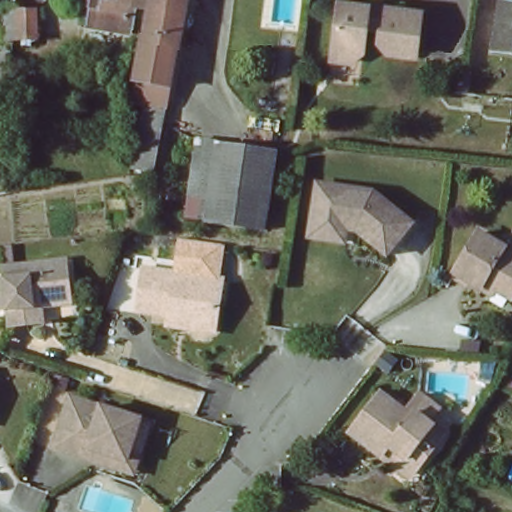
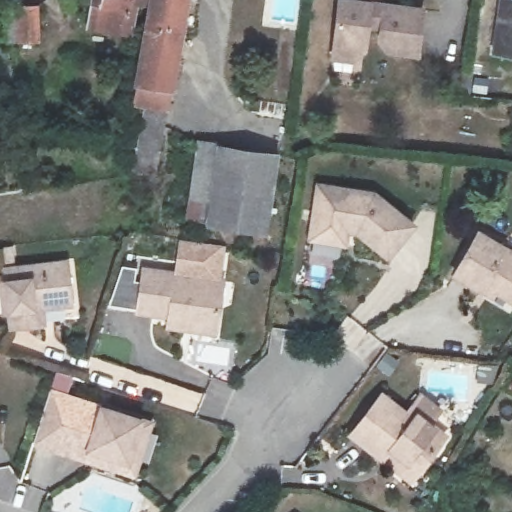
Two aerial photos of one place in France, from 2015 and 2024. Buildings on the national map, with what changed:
unchanged [(38,34),(17,34),(18,0),(37,0),(38,34)]
unchanged [(123,33),(83,23),(88,0),(131,0),(130,5),(123,33)]
unchanged [(131,0),(183,0),(164,89),(135,82),(152,10),(130,5),(131,0)]
unchanged [(370,4),(385,6),(386,1),(424,7),(418,51),(388,47),(381,37),(383,24),(369,22),(366,45),(352,55),(334,53),(340,0),(371,0),(370,4)]
unchanged [(493,48),(500,0),(512,0),(512,50),(493,48)]
unchanged [(135,82),(164,89),(145,169),(125,165),(138,107),(130,105),(135,82)]
unchanged [(275,156),(265,230),(207,224),(215,149),(275,156)]
unchanged [(315,245),(316,230),(318,191),(375,195),(414,226),(390,257),(358,233),(348,232),(347,247),(315,245)]
unchanged [(486,290),(459,275),(481,232),(512,248),(512,295),(500,288),(495,295),(486,290)]
unchanged [(35,323),(14,326),(6,267),(67,259),(74,302),(45,305),(47,322),(35,323)]
unchanged [(173,316),(140,312),(145,270),(218,278),(226,279),(223,306),(219,331),(193,329),(172,326),(173,316)]
unchanged [(382,461),(351,438),(382,399),(407,418),(421,399),(439,412),(429,426),(445,438),(418,473),(410,483),(382,461)]
unchanged [(140,477),(90,463),(58,454),(73,402),(145,422),(154,425),(140,477)]

